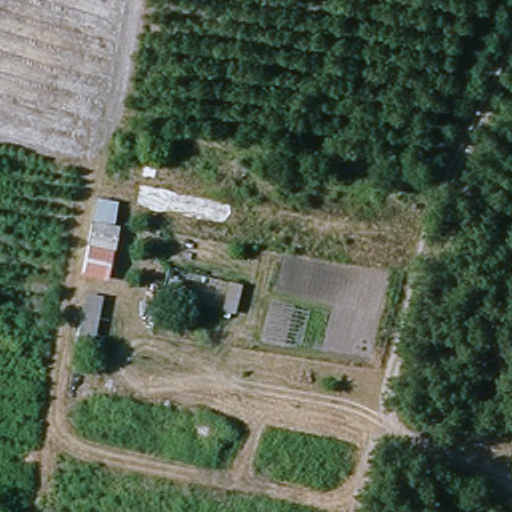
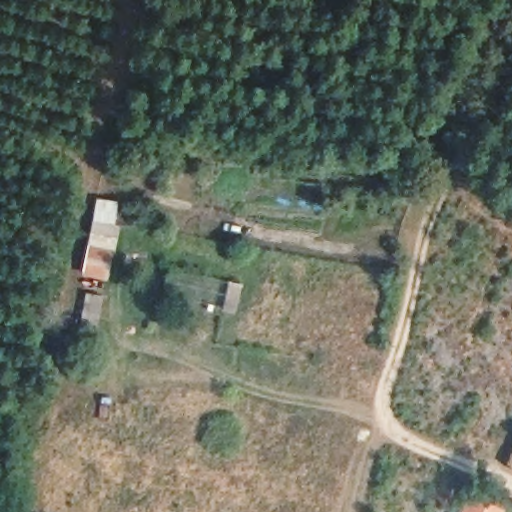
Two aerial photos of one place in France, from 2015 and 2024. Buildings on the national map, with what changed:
unchanged [(112,248),(92,247),(98,201),(118,204),(112,248)]
unchanged [(236,315),(222,312),(229,283),(243,286),(236,315)]
unchanged [(99,318),(113,321),(109,344),(91,342),(89,356),(72,351),(80,294),(101,299),(99,318)]
new [(489,503),(507,511),(507,512),(463,512),(469,498),(487,507),(489,503)]

